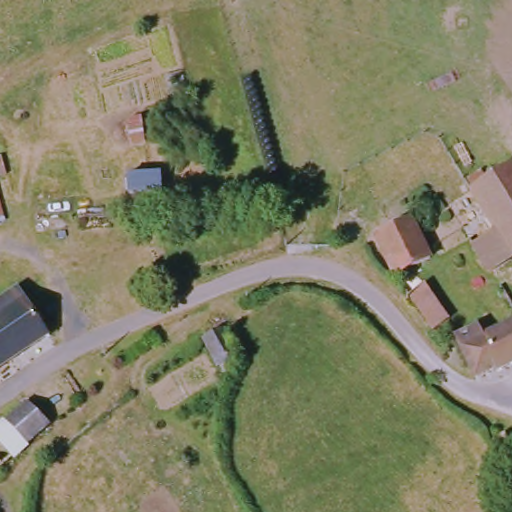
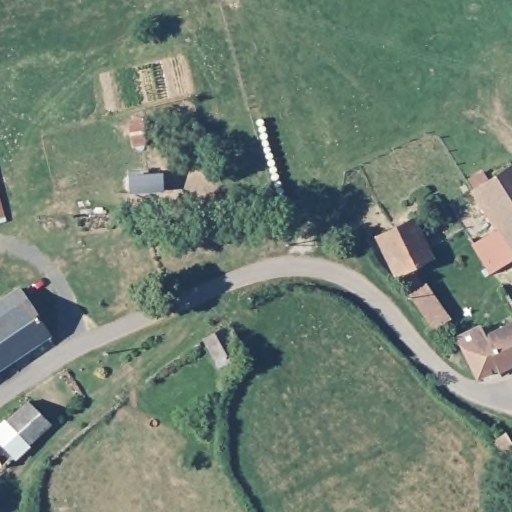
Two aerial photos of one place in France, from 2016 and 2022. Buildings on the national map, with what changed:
unchanged [(479,250),(502,235),(477,195),(512,173),(512,266),(496,277),(479,250)]
unchanged [(129,192),(127,176),(162,174),(162,191),(129,192)]
unchanged [(413,220),(432,258),(395,276),(376,237),(413,220)]
unchanged [(425,286),(448,319),(434,328),(411,296),(425,286)]
unchanged [(0,369),(0,300),(19,288),(49,336),(0,369)]
unchanged [(477,328),(480,332),(491,326),(494,331),(512,322),(512,365),(497,372),(495,368),(477,378),(457,338),(477,328)]
unchanged [(225,328),(240,356),(218,368),(203,338),(225,328)]
unchanged [(0,425),(4,422),(27,402),(51,426),(1,468),(0,467),(0,425)]
unchanged [(512,444),(512,455),(506,459),(495,441),(506,434),(512,444)]

